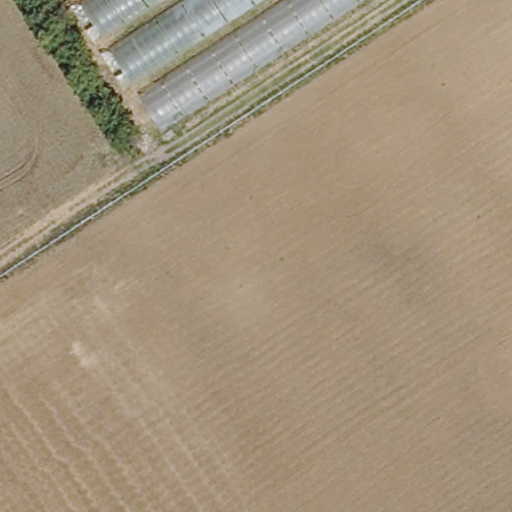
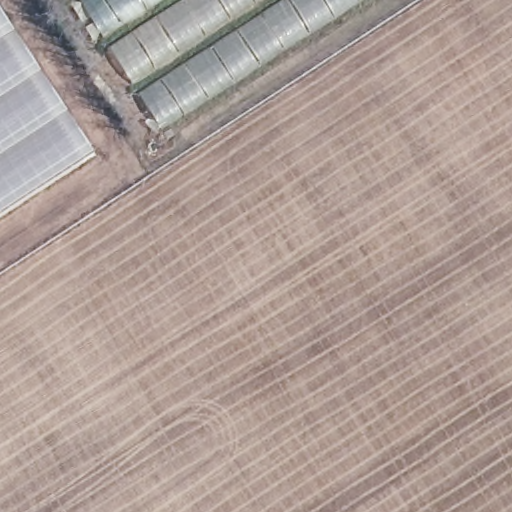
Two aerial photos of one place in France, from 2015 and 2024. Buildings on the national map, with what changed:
unchanged [(170,128),(88,0),(370,0),(170,128)]
new [(98,157),(0,221),(0,9),(98,157)]

